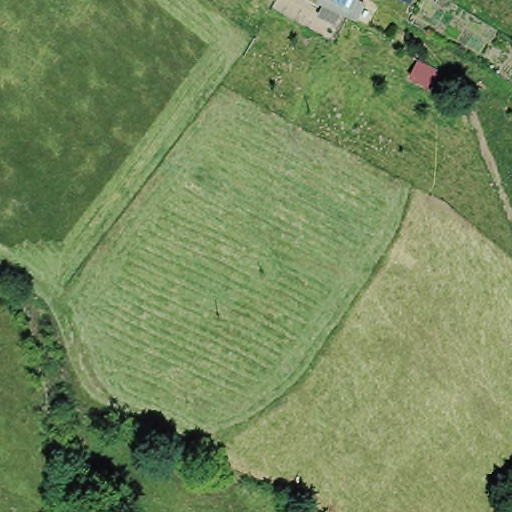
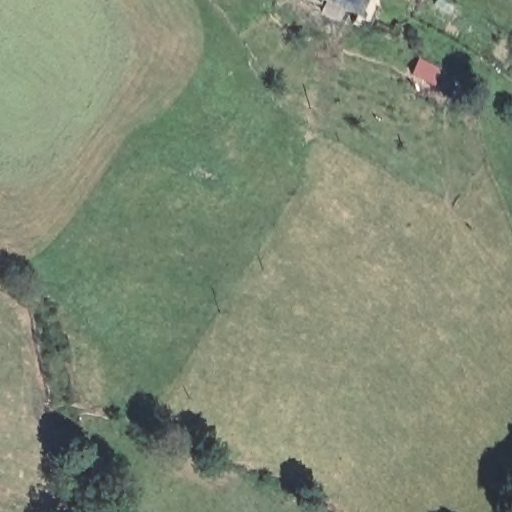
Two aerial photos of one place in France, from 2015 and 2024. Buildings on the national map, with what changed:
unchanged [(363,2),(355,18),(318,1),(319,0),(357,0),(363,2)]

